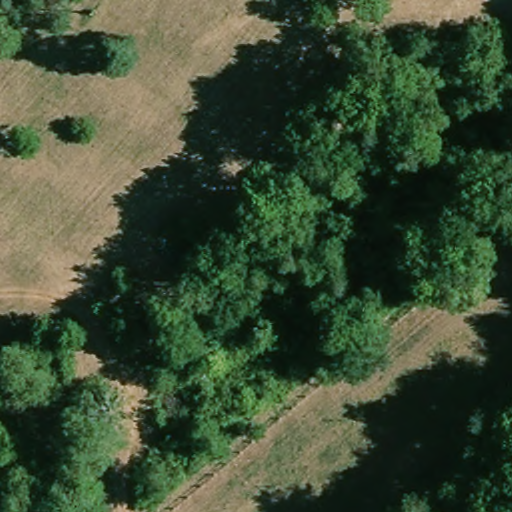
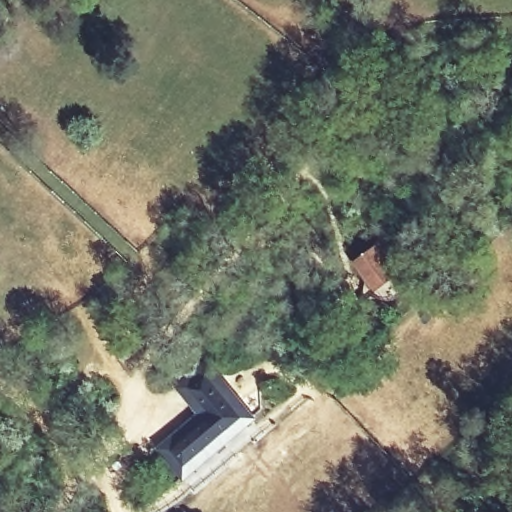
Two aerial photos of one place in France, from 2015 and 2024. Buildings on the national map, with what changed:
new [(380,243),(402,275),(404,285),(400,291),(392,294),(382,292),(377,288),(355,260),(380,243)]
unchanged [(157,298),(178,312),(163,334),(143,319),(157,298)]
new [(197,412),(173,384),(207,357),(258,417),(187,479),(157,446),(197,412)]

